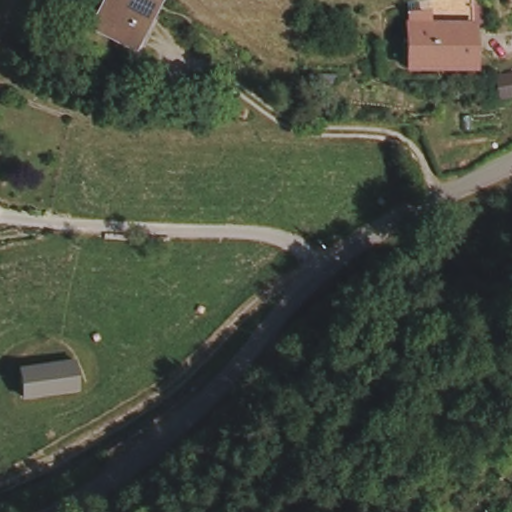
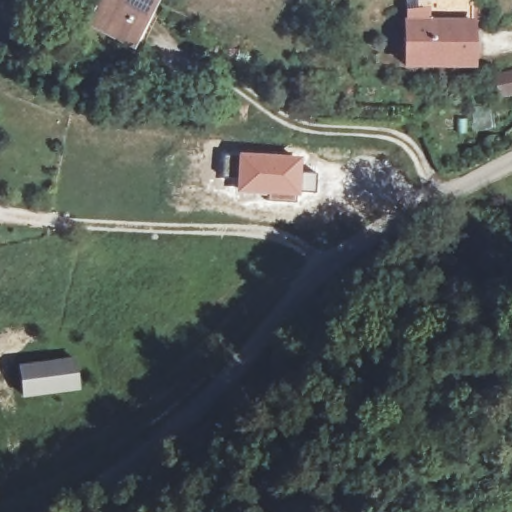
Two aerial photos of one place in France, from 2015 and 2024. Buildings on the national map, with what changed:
unchanged [(155,0),(128,41),(95,20),(86,14),(96,0),(155,0)]
unchanged [(426,26),(406,25),(407,17),(407,7),(427,2),(426,14),(472,9),(471,28),(426,26)]
unchanged [(403,62),(404,25),(406,25),(426,26),(471,28),(473,28),(471,72),(429,70),(402,69),(403,62)]
unchanged [(512,71),(512,89),(499,92),(496,75),(512,71)]
new [(236,153),(303,157),(301,172),(318,172),(316,195),(299,194),(298,203),(235,195),(236,153)]
unchanged [(47,390),(34,392),(33,385),(29,363),(86,355),(91,383),(47,390)]

